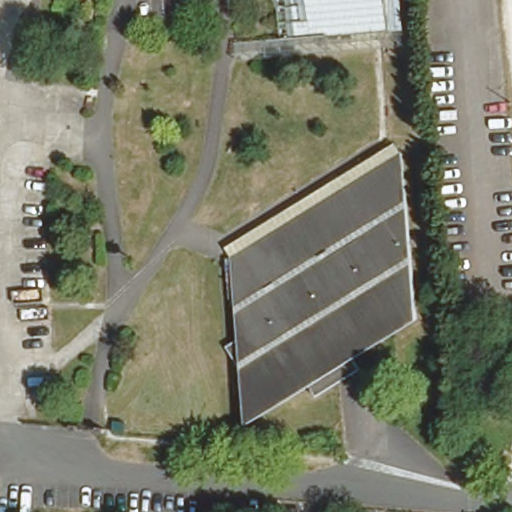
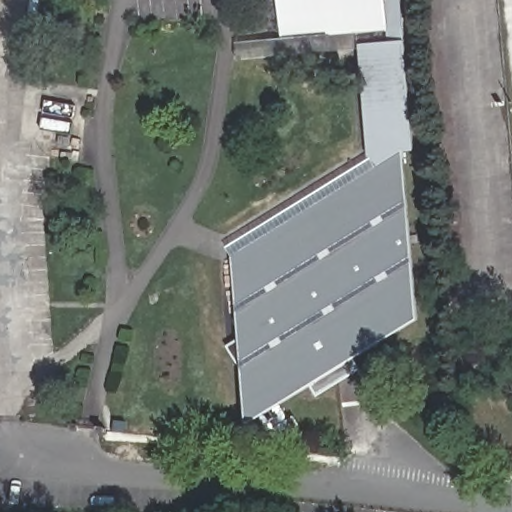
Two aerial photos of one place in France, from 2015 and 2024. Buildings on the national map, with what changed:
unchanged [(399,23),(400,35),(381,36),(381,40),(238,54),(236,39),(282,34),(279,0),(295,0),(298,33),(399,23)]
unchanged [(298,33),(295,0),(397,0),(399,23),(298,33)]
new [(368,156),(359,43),(381,40),(381,36),(400,35),(405,35),(405,41),(413,150),(401,151),(395,159),(378,169),(368,156)]
unchanged [(224,262),(395,159),(400,168),(229,269),(224,262)]
unchanged [(311,407),(306,399),(245,438),(239,384),(225,360),(236,354),(229,269),(400,168),(407,248),(410,274),(416,329),(353,369),(358,377),(311,407)]

